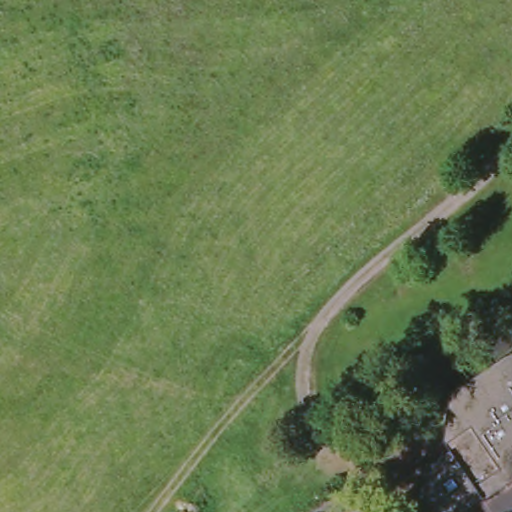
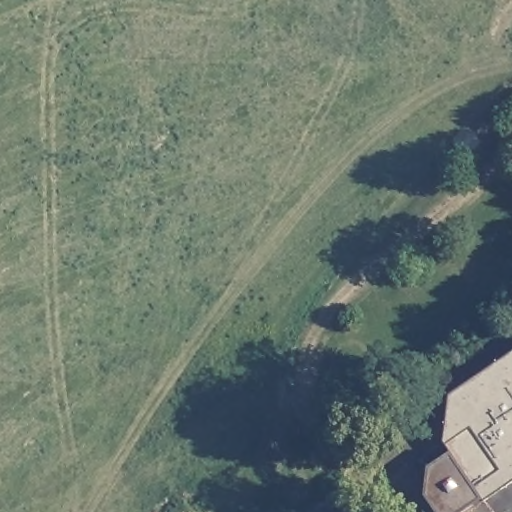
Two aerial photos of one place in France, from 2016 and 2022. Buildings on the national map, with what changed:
unchanged [(424,491),(428,465),(451,450),(443,440),(450,390),(512,350),(512,477),(457,512),(437,512),(424,491)]

